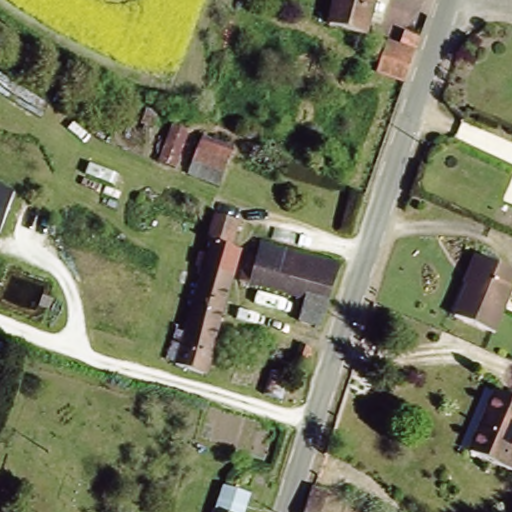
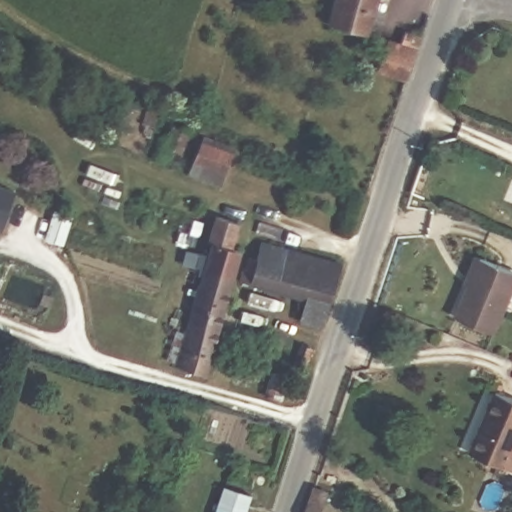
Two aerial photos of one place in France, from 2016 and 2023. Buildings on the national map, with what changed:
unchanged [(368,33),(329,23),(336,0),(376,0),(368,33)]
unchanged [(377,72),(382,58),(374,55),(379,42),(387,45),(388,41),(402,46),(406,33),(414,36),(421,16),(428,18),(406,82),(377,72)]
unchanged [(201,136),(235,150),(223,191),(186,178),(201,136)]
unchanged [(0,228),(0,183),(13,188),(0,228)]
unchanged [(233,279),(217,274),(204,271),(211,244),(208,243),(216,217),(238,223),(231,250),(241,253),(233,279)]
unchanged [(336,261),(343,263),(321,327),(299,320),(306,298),(251,282),(250,284),(238,280),(241,267),(245,268),(248,256),(256,258),(256,256),(261,240),(294,249),(333,261),(336,261)]
unchanged [(480,260),(512,273),(512,291),(506,306),(468,288),(480,260)]
unchanged [(212,355),(214,356),(208,374),(176,365),(183,342),(187,337),(189,321),(190,318),(203,278),(197,276),(199,269),(204,271),(217,274),(233,279),(212,355)]
unchanged [(506,306),(494,334),(454,318),(468,288),(506,306)]
unchanged [(294,363),(302,345),(312,349),(304,367),(294,363)]
unchanged [(512,390),(512,462),(472,445),(499,384),(512,390)]
unchanged [(219,512),(228,483),(253,491),(247,512),(219,512)]
unchanged [(318,512),(303,512),(309,491),(324,496),(318,512)]

